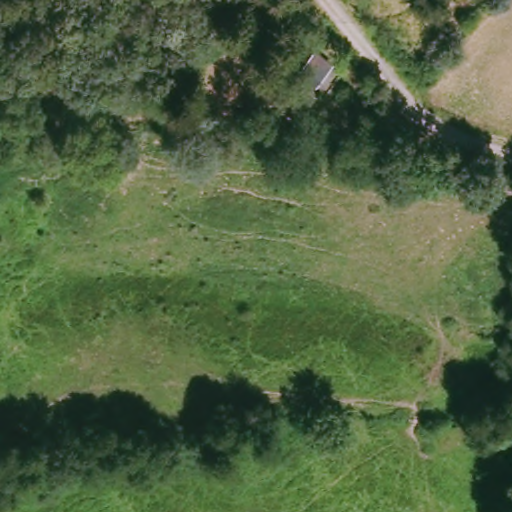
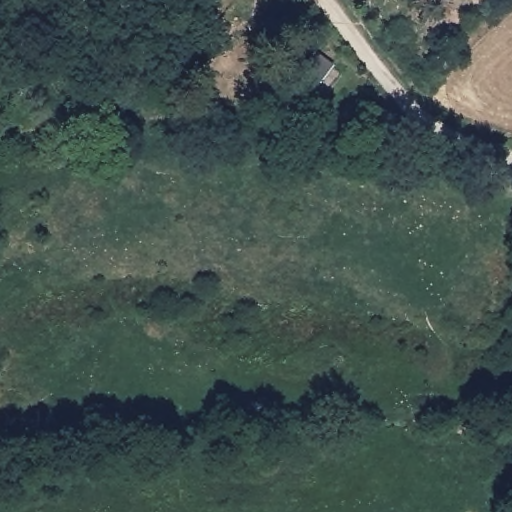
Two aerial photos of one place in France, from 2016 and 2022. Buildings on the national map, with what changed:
unchanged [(331,65),(314,85),(299,73),(314,53),(331,65)]

